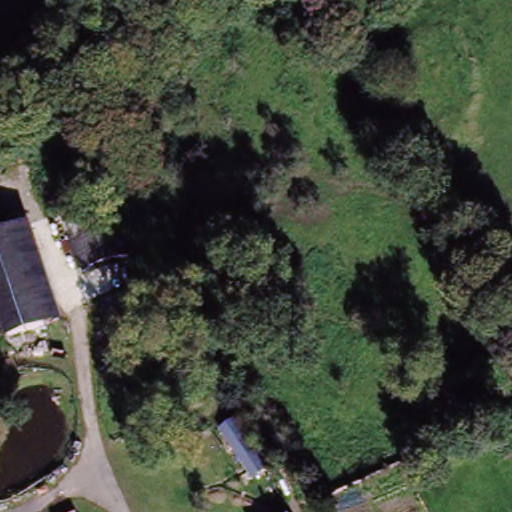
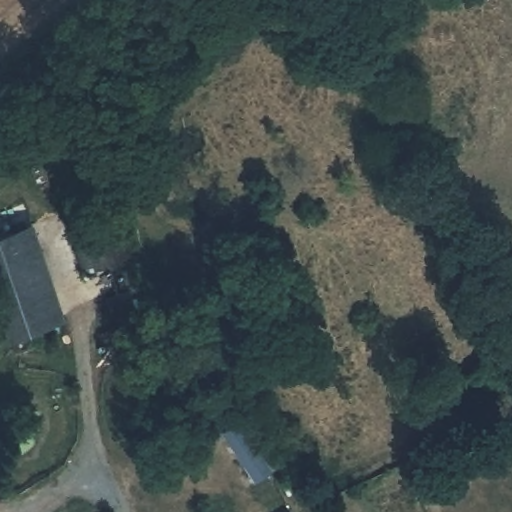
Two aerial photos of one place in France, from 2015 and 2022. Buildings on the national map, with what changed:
unchanged [(124,205),(140,254),(91,270),(75,221),(124,205)]
unchanged [(35,225),(60,317),(44,321),(19,231),(35,225)]
unchanged [(6,332),(0,312),(0,236),(19,231),(44,321),(6,332)]
unchanged [(262,470),(249,477),(219,429),(232,422),(262,470)]

